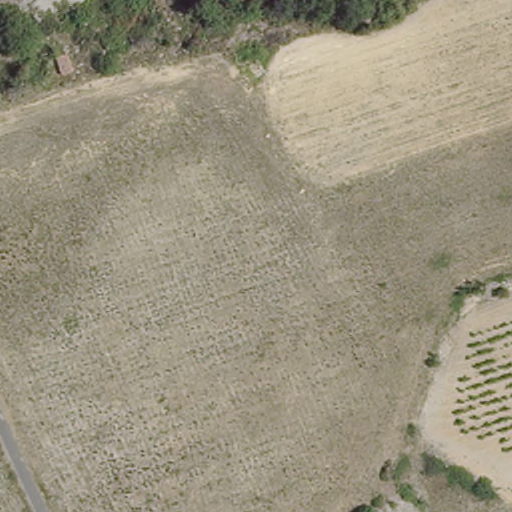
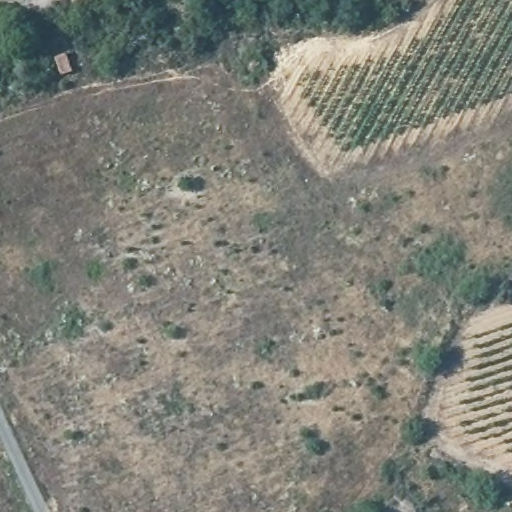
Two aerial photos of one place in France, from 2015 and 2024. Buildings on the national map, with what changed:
unchanged [(58,79),(51,62),(65,57),(71,74),(58,79)]

